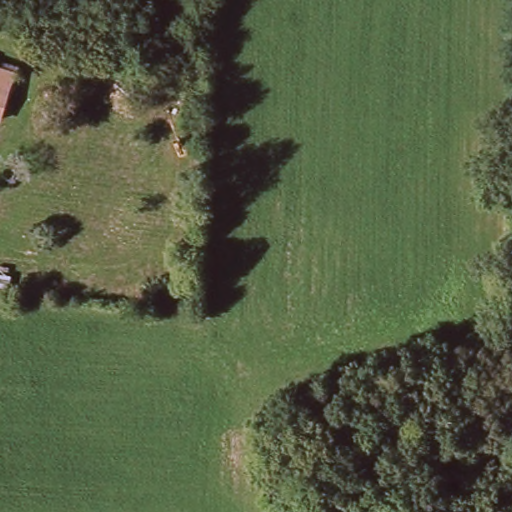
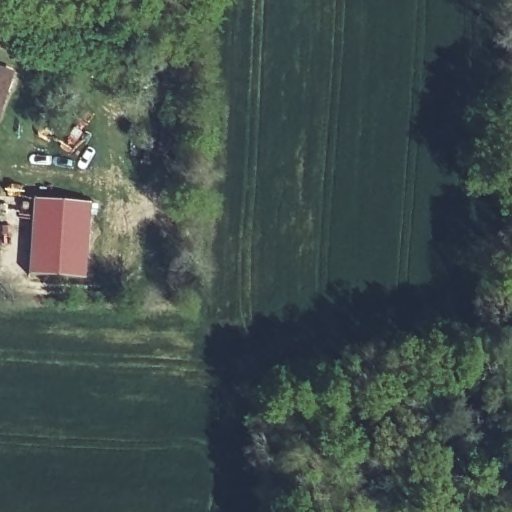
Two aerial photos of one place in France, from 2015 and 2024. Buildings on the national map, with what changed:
new [(14,72),(0,122),(0,68),(14,72)]
demolished [(0,113),(0,90),(7,92),(0,113)]
new [(88,278),(29,277),(34,200),(91,204),(88,278)]

